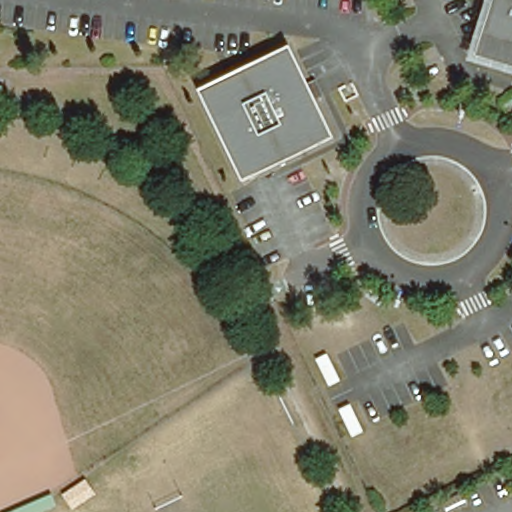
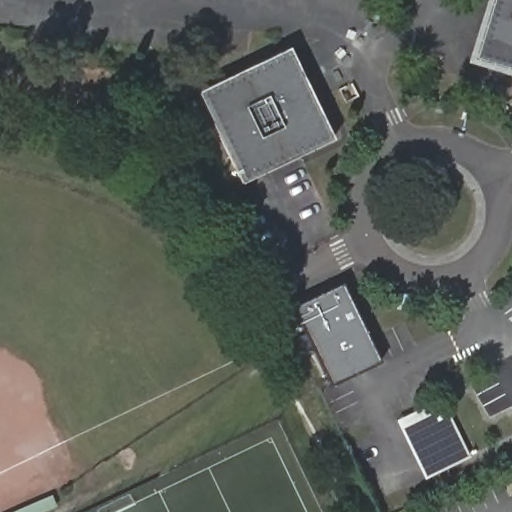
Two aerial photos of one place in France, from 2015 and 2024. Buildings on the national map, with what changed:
unchanged [(483,0),(512,0),(512,70),(466,55),(483,0)]
unchanged [(244,187),(198,95),(290,49),(309,88),(317,104),(335,141),(244,187)]
new [(331,386),(291,305),(342,280),(382,361),(331,386)]
new [(424,479),(396,419),(442,397),(469,456),(424,479)]
unchanged [(51,494),(56,505),(40,512),(10,512),(51,494)]

